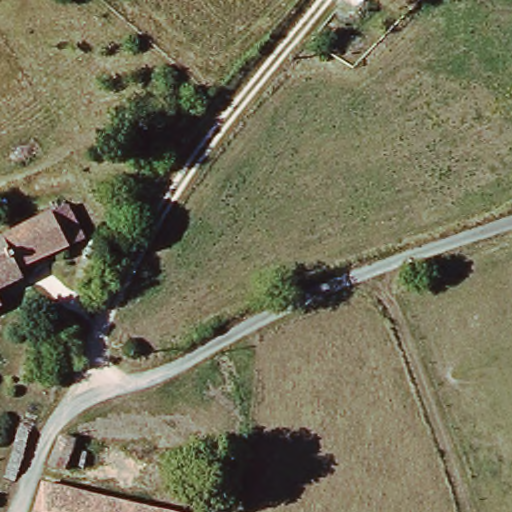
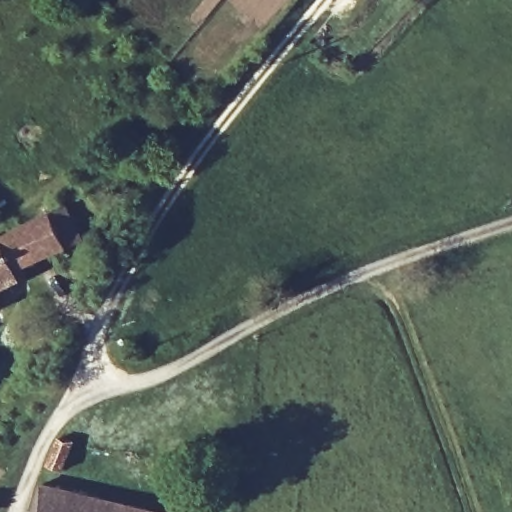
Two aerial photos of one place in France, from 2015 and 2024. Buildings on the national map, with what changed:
unchanged [(0,239),(73,206),(89,239),(0,281),(0,239)]
unchanged [(0,306),(0,292),(5,303),(0,306)]
unchanged [(64,435),(76,442),(63,469),(52,465),(64,435)]
unchanged [(85,492),(146,505),(180,512),(37,512),(45,482),(85,492)]

